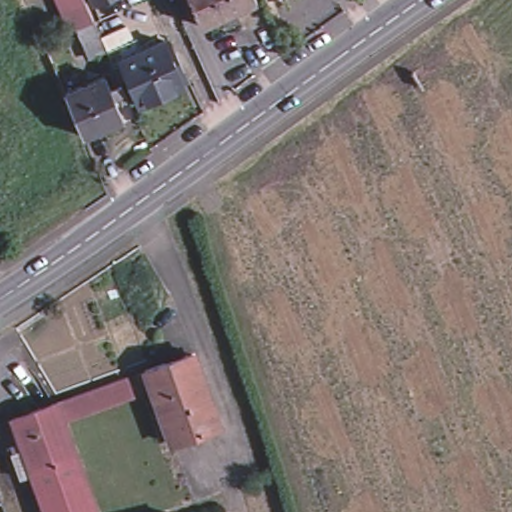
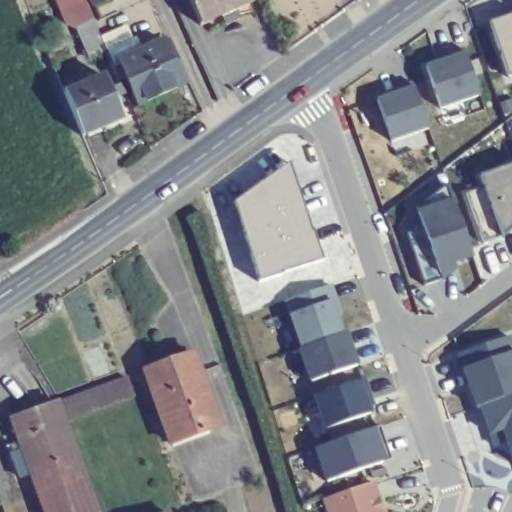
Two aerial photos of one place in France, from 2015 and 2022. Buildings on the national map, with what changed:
unchanged [(129,40),(107,51),(107,52),(90,60),(80,34),(69,28),(57,0),(85,0),(96,26),(101,37),(123,27),(129,40)]
unchanged [(95,7),(92,0),(109,0),(95,7)]
unchanged [(229,31),(222,35),(217,23),(196,33),(181,0),(249,0),(252,6),(232,15),(237,27),(229,31)]
new [(490,23),(512,15),(512,76),(507,78),(490,23)]
unchanged [(183,87),(140,107),(120,62),(164,41),(183,87)]
new [(426,67),(467,55),(480,96),(441,111),(426,67)]
unchanged [(125,120),(84,138),(66,94),(106,77),(125,120)]
new [(377,99),(416,86),(429,129),(391,143),(377,99)]
new [(467,193),(484,186),(481,176),(512,165),(512,231),(502,237),(484,245),(467,193)]
new [(407,235),(424,227),(418,213),(416,209),(449,184),(453,200),(472,258),(457,264),(457,271),(443,279),(424,285),(407,235)]
new [(287,316),(281,301),(329,284),(334,301),(345,333),(351,331),(359,365),(309,383),(287,316)]
new [(507,442),(493,448),(489,435),(479,408),(475,410),(463,371),(456,355),(510,334),(512,340),(512,459),(507,442)]
unchanged [(150,372),(157,370),(170,365),(171,367),(190,360),(195,373),(204,369),(226,428),(182,444),(177,446),(150,372)]
new [(313,395),(361,380),(371,413),(324,429),(313,395)]
unchanged [(72,431),(98,512),(46,512),(34,478),(24,482),(15,456),(25,453),(15,424),(127,384),(136,409),(72,431)]
new [(312,449),(375,428),(386,461),(325,483),(312,449)]
new [(374,482),(384,512),(327,512),(322,499),(374,482)]

